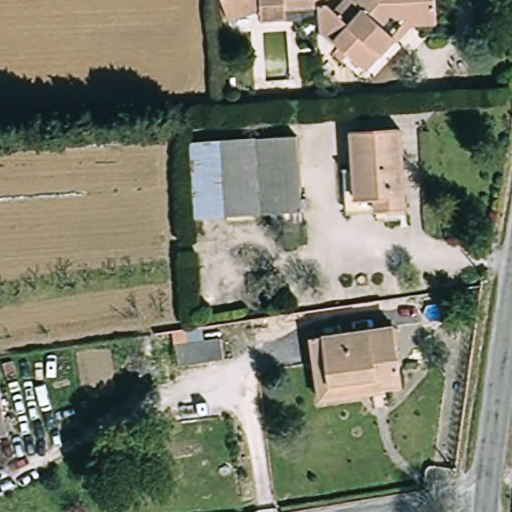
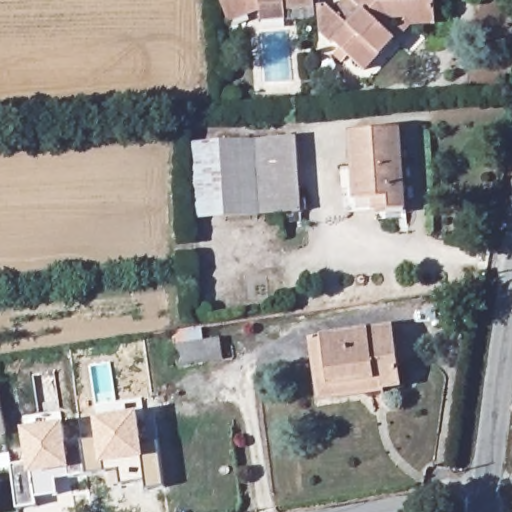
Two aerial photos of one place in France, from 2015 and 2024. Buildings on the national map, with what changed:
unchanged [(351,1),(363,11),(336,46),(317,33),(317,19),(263,23),(261,10),(231,23),(221,0),(324,0),(340,11),(351,1)]
unchanged [(336,46),(363,11),(351,1),(353,0),(436,0),(436,21),(392,21),(386,30),(396,39),(369,71),(336,46)]
unchanged [(413,210),(351,214),(349,173),(364,172),(361,133),(409,129),(413,210)]
unchanged [(296,138),(300,211),(222,214),(219,142),(296,138)]
unchanged [(189,143),(219,142),(222,214),(193,217),(189,143)]
unchanged [(386,379),(334,386),(329,336),(397,328),(404,384),(387,386),(386,379)]
new [(226,333),(229,354),(183,361),(181,339),(226,333)]
unchanged [(386,379),(387,386),(388,393),(323,401),(314,338),(329,336),(334,386),(386,379)]
unchanged [(5,437),(0,438),(0,389),(5,437)]
new [(121,484),(119,471),(55,481),(57,494),(35,498),(37,507),(18,510),(11,467),(30,464),(26,433),(63,427),(65,445),(100,439),(98,420),(138,416),(142,447),(159,444),(165,488),(146,491),(144,481),(121,484)]

